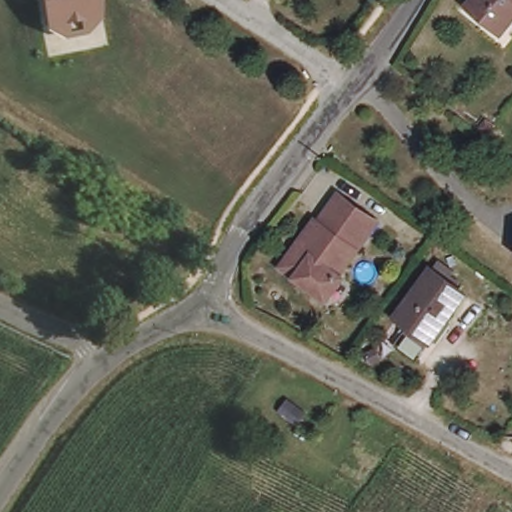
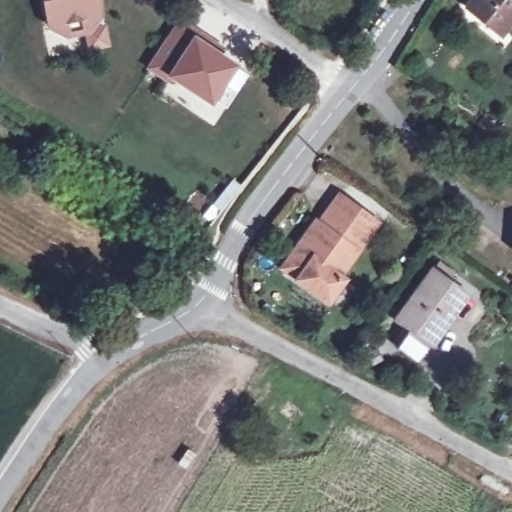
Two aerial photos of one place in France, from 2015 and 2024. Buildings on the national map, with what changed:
unchanged [(103,21),(85,39),(65,40),(45,31),(39,0),(99,0),(103,21)]
unchanged [(482,24),(466,10),(474,0),(512,0),(512,23),(500,38),(482,24)]
new [(201,30),(195,35),(239,64),(211,106),(169,79),(170,85),(143,68),(175,18),(201,30)]
unchanged [(287,263),(317,221),(320,224),(340,196),(377,222),(340,275),(344,278),(329,299),(299,278),(284,268),(287,263)]
unchanged [(395,340),(409,321),(396,310),(431,265),(467,290),(430,338),(417,357),(395,340)]
new [(305,413),(297,424),(280,411),(288,400),(305,413)]

